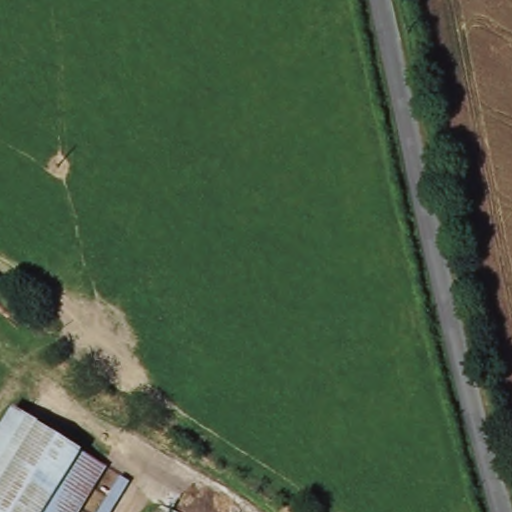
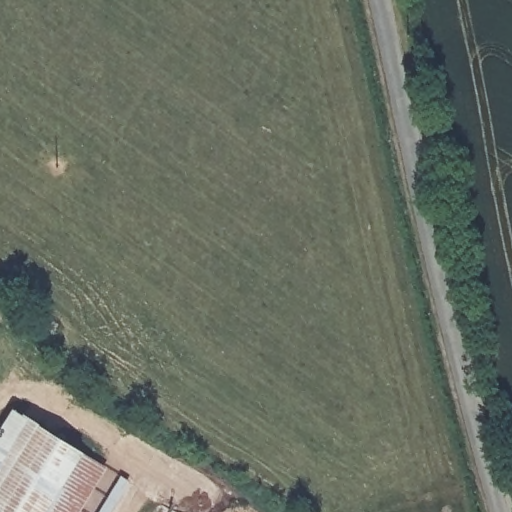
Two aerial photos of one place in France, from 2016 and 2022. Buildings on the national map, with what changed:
unchanged [(42,431),(102,469),(74,512),(0,512),(0,442),(18,415),(42,431)]
unchanged [(122,476),(132,482),(114,512),(99,512),(122,476)]

